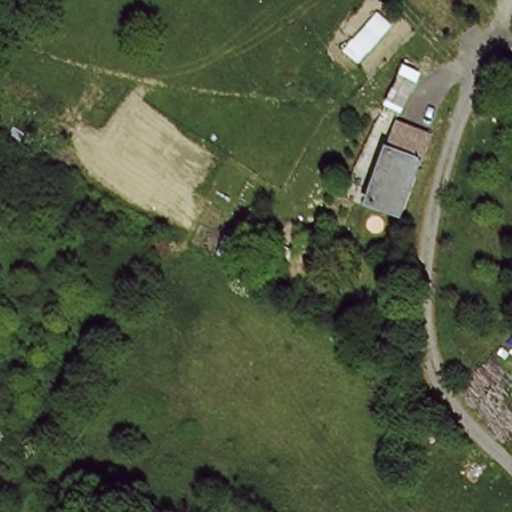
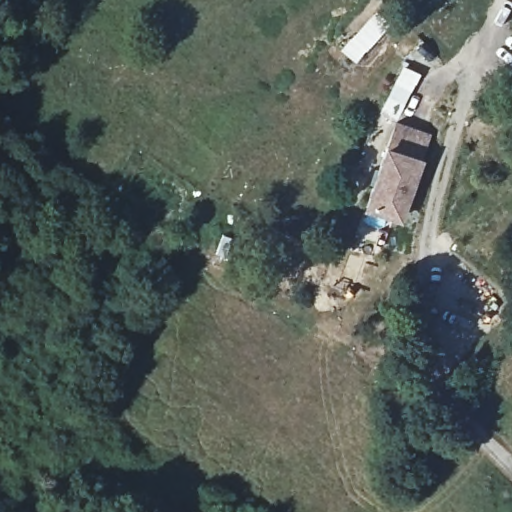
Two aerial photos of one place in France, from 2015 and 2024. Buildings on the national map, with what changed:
unchanged [(431,139),(397,222),(368,210),(403,127),(431,139)]

